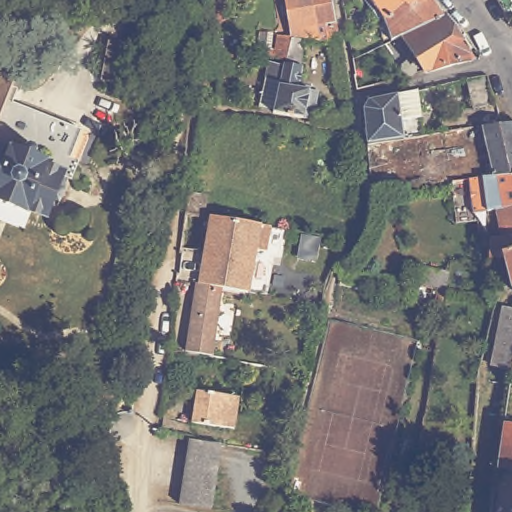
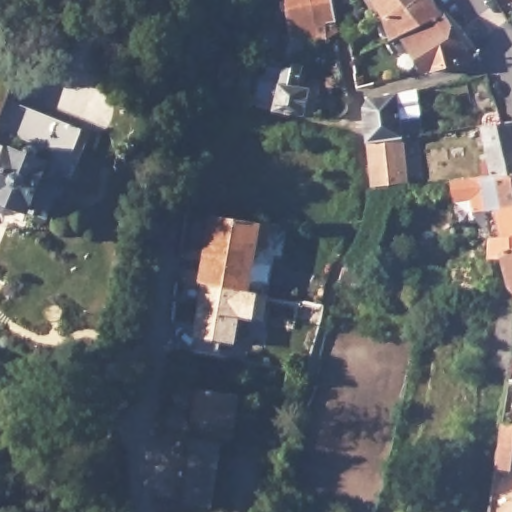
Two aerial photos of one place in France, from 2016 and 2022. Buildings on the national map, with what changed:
unchanged [(305,39),(291,38),(284,0),(312,0),(316,25),(317,40),(305,39)]
unchanged [(317,40),(316,25),(312,0),(332,0),(336,22),(338,33),(329,39),(329,41),(317,40)]
unchanged [(383,19),(370,0),(422,0),(383,19)]
unchanged [(382,35),(377,24),(383,22),(383,19),(422,0),(432,0),(443,17),(402,35),(402,36),(391,41),(390,37),(383,40),(382,35)]
unchanged [(472,61),(425,72),(402,36),(402,35),(443,17),(444,17),(472,61)]
unchanged [(268,62),(283,65),(285,65),(286,61),(273,60),(260,57),(262,47),(276,50),(278,35),(291,37),(291,38),(305,39),(300,67),(302,67),(298,87),(319,91),(314,120),(313,120),(272,112),(257,109),(265,77),(268,62)]
unchanged [(106,77),(114,39),(133,42),(125,81),(106,77)]
unchanged [(240,56),(239,69),(219,67),(220,52),(240,56)]
unchanged [(493,107),(472,109),(466,80),(487,76),(493,107)]
unchanged [(26,94),(22,110),(84,132),(48,219),(0,199),(0,84),(26,94)]
unchanged [(424,136),(403,139),(367,143),(364,110),(365,109),(365,108),(367,104),(368,102),(370,101),(397,95),(416,91),(424,136)]
unchanged [(512,170),(487,171),(477,122),(496,120),(510,119),(512,130),(512,170)]
unchanged [(408,186),(373,189),(367,143),(403,139),(408,186)]
unchanged [(512,201),(491,205),(482,206),(467,207),(463,172),(487,172),(487,171),(512,170),(512,201)]
unchanged [(211,190),(207,210),(190,207),(190,203),(192,187),(211,190)]
unchanged [(512,244),(508,245),(508,244),(496,249),(497,254),(491,254),(483,254),(485,234),(496,232),(491,205),(512,201),(512,244)]
unchanged [(269,245),(259,244),(252,287),(227,283),(205,279),(210,250),(212,232),(216,211),(273,221),(269,245)]
unchanged [(505,282),(497,254),(496,249),(508,244),(508,245),(512,244),(512,290),(511,289),(505,282)]
unchanged [(434,307),(437,287),(432,287),(429,302),(337,285),(343,268),(343,267),(418,283),(422,266),(448,271),(445,289),(441,307),(434,307)]
unchanged [(205,279),(227,283),(217,351),(191,347),(200,279),(205,279)]
unchanged [(512,308),(504,365),(485,362),(497,302),(512,305),(512,308)]
unchanged [(239,397),(234,429),(192,422),(197,390),(239,397)]
unchanged [(497,452),(502,423),(504,423),(505,417),(512,419),(512,469),(496,467),(497,452)]
unchanged [(210,510),(179,505),(189,439),(220,444),(210,510)]

